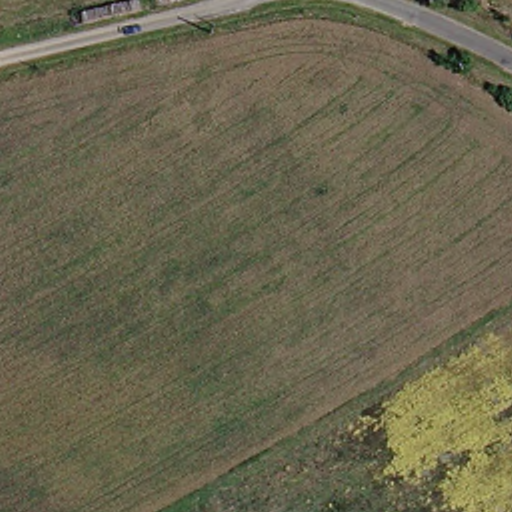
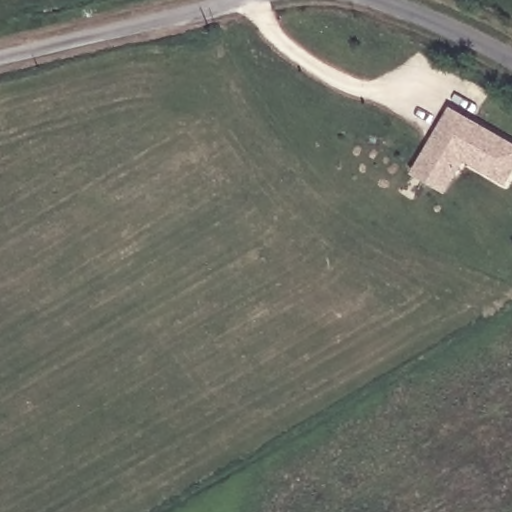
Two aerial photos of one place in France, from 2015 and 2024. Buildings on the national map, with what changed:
new [(451,106),(512,144),(512,174),(506,184),(465,163),(447,195),(412,174),(451,106)]

